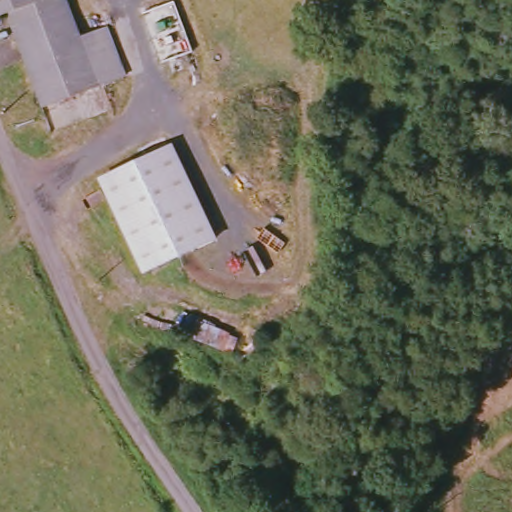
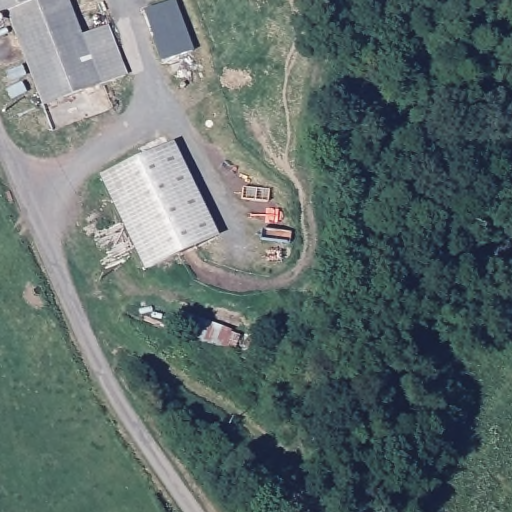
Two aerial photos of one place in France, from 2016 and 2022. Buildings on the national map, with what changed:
unchanged [(0,0),(74,0),(87,33),(113,24),(130,71),(49,102),(12,8),(0,12),(0,0)]
new [(175,0),(194,50),(163,63),(145,12),(175,0)]
unchanged [(100,179),(175,144),(218,240),(145,276),(100,179)]

